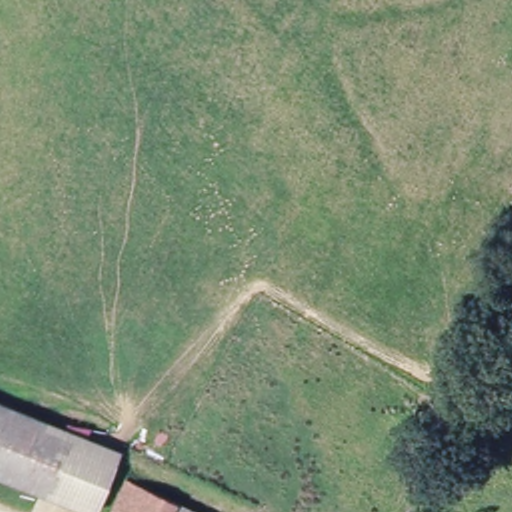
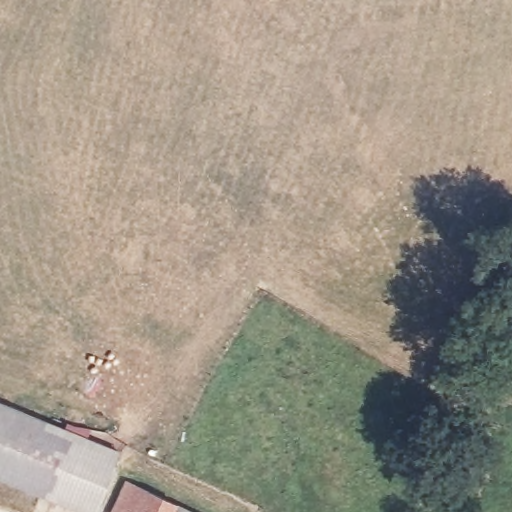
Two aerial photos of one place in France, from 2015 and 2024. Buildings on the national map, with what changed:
unchanged [(0,407),(114,456),(89,512),(66,512),(40,500),(0,483),(0,407)]
unchanged [(149,493),(140,512),(118,512),(130,485),(149,493)]
unchanged [(178,509),(176,512),(140,512),(149,493),(169,500),(179,506),(178,509)]
unchanged [(176,512),(178,509),(184,512),(176,512)]

